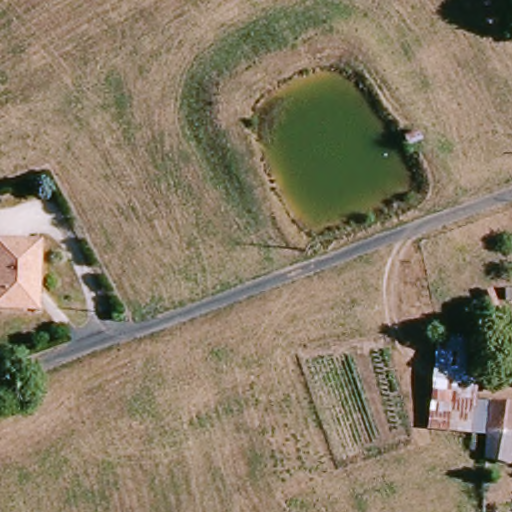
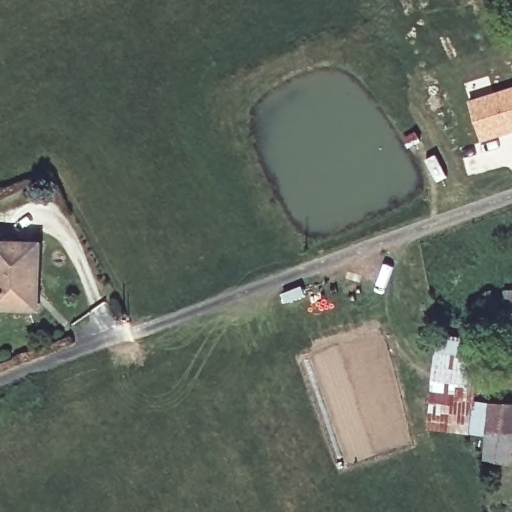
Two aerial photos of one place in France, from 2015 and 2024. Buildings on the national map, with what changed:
new [(512,86),(512,133),(480,144),(467,101),(512,86)]
unchanged [(0,313),(0,249),(42,250),(40,282),(39,316),(32,316),(0,313)]
unchanged [(477,338),(474,401),(432,398),(435,336),(477,338)]
unchanged [(430,435),(432,398),(474,401),(492,403),(489,440),(482,439),(430,435)]
unchanged [(487,465),(488,452),(489,440),(492,403),(512,404),(512,467),(487,465)]

